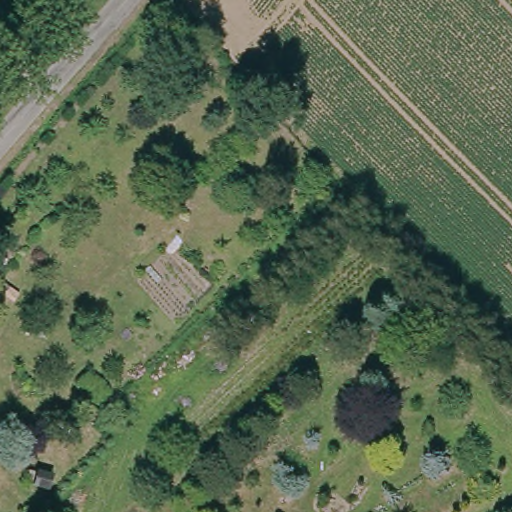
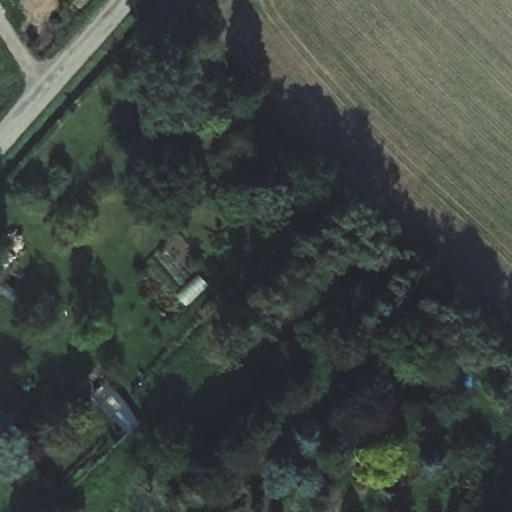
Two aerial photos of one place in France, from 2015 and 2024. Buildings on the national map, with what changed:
[]

